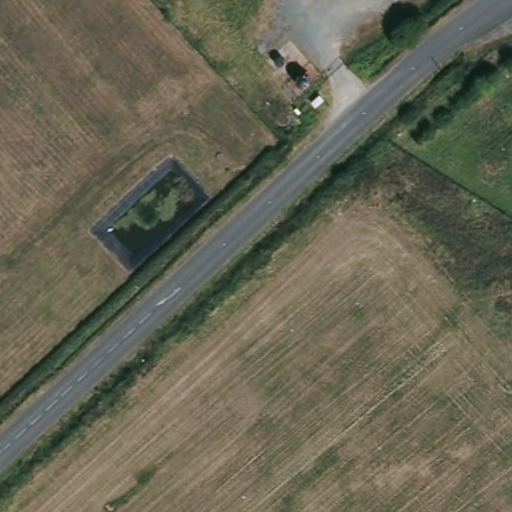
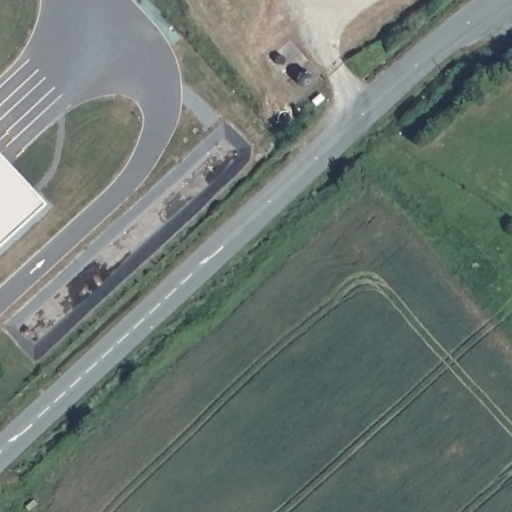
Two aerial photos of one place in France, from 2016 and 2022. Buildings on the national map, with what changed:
new [(41,204),(0,242),(0,160),(41,204)]

